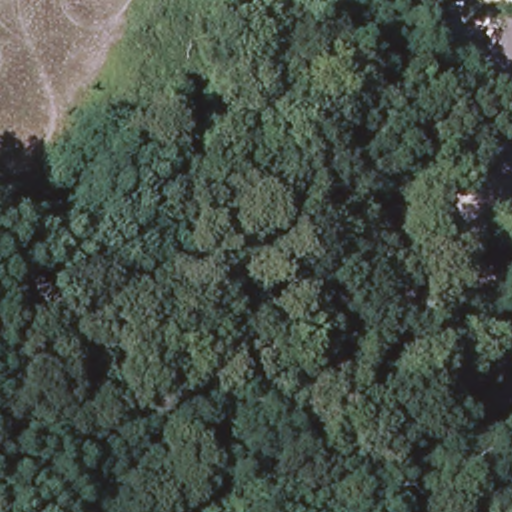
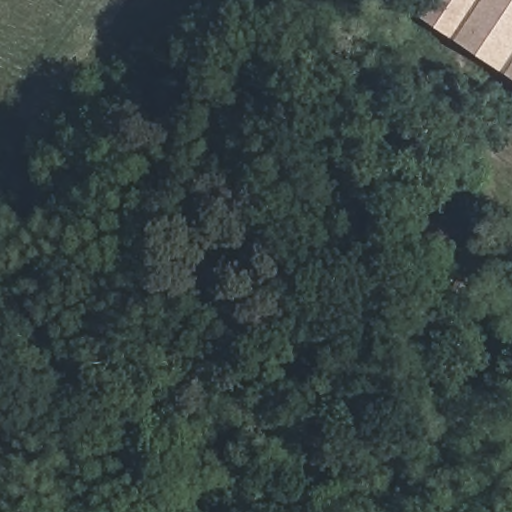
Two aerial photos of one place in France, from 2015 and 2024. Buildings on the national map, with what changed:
new [(420,17),(430,0),(512,0),(512,79),(420,17)]

